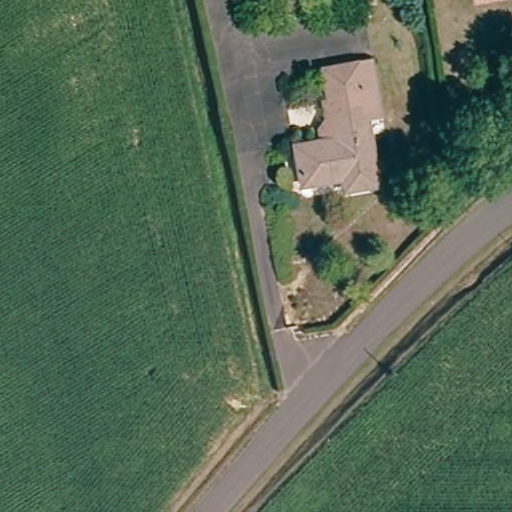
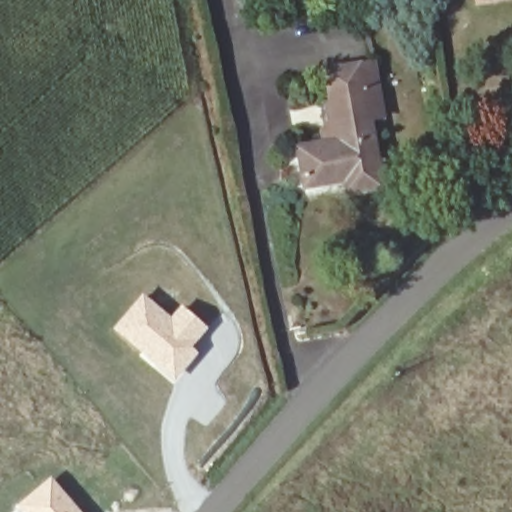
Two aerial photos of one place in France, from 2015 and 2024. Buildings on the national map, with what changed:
unchanged [(473,9),(471,0),(512,0),(512,2),(473,9)]
unchanged [(325,74),(359,67),(374,64),(383,118),(368,121),(379,186),(345,193),(342,180),(302,188),(295,147),(335,139),(325,74)]
new [(142,293),(170,315),(180,304),(207,327),(191,346),(198,352),(173,383),(111,328),(142,293)]
new [(81,512),(9,512),(50,475),(81,512)]

